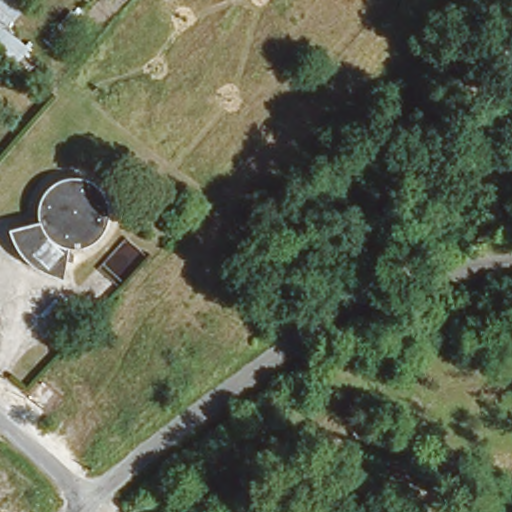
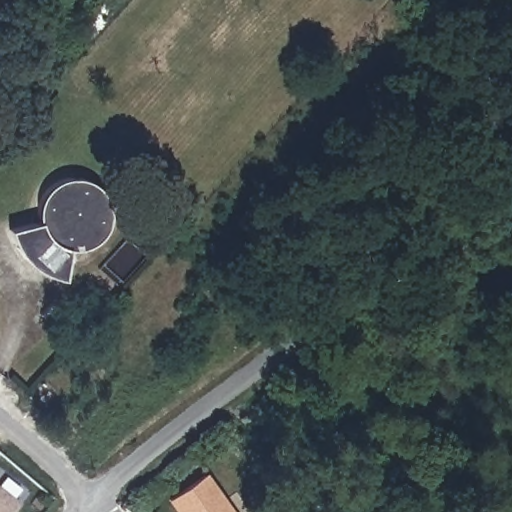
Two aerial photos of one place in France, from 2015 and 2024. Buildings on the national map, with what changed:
unchanged [(0,23),(0,0),(20,0),(0,23)]
unchanged [(130,242),(149,260),(120,290),(100,272),(130,242)]
new [(206,471),(235,512),(177,512),(167,499),(206,471)]
new [(0,496),(0,491),(19,505),(13,512),(8,512),(12,506),(0,496)]
unchanged [(8,512),(0,512),(0,496),(12,506),(8,512)]

